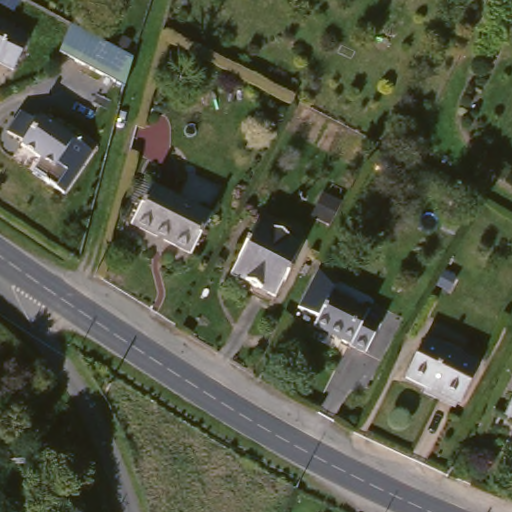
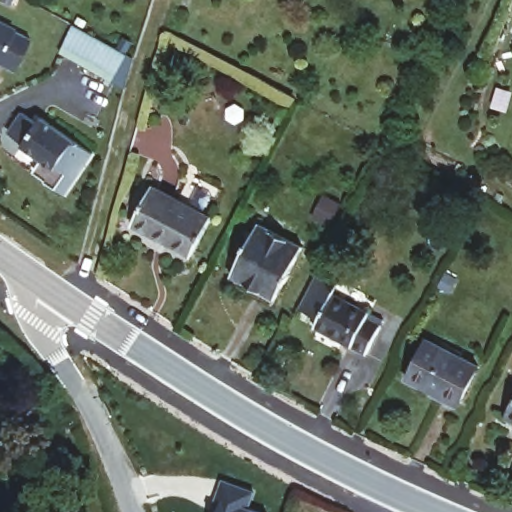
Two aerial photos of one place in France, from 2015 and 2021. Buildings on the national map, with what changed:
unchanged [(13,23),(30,32),(14,65),(0,57),(0,15),(14,23),(13,23)]
unchanged [(134,54),(125,85),(60,52),(75,22),(134,54)]
unchanged [(41,178),(41,177),(30,169),(38,157),(17,143),(19,140),(3,130),(17,110),(32,121),(36,115),(88,150),(60,191),(41,178)]
unchanged [(195,254),(136,223),(125,217),(146,178),(157,184),(216,215),(195,254)]
unchanged [(322,219),(333,197),(347,204),(335,226),(322,219)]
unchanged [(307,246),(277,304),(257,294),(260,288),(236,274),(263,223),(307,246)]
unchanged [(337,289),(375,309),(372,313),(386,321),(371,350),(319,324),(337,289)]
unchanged [(484,364),(466,400),(439,386),(437,389),(413,376),(433,338),(484,364)]
unchanged [(512,406),(512,415),(508,413),(512,406)]
new [(213,505),(222,480),(253,491),(247,507),(260,512),(217,512),(219,507),(213,505)]

